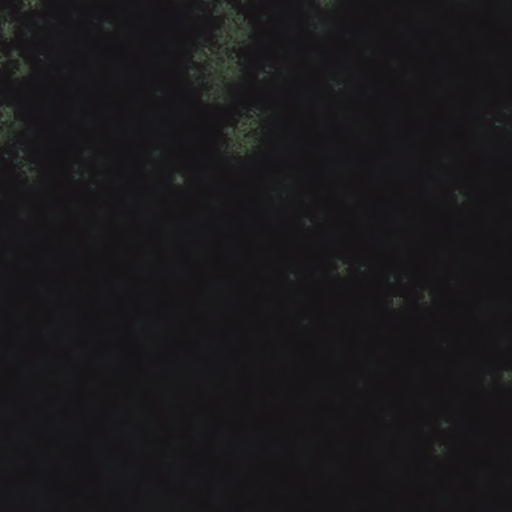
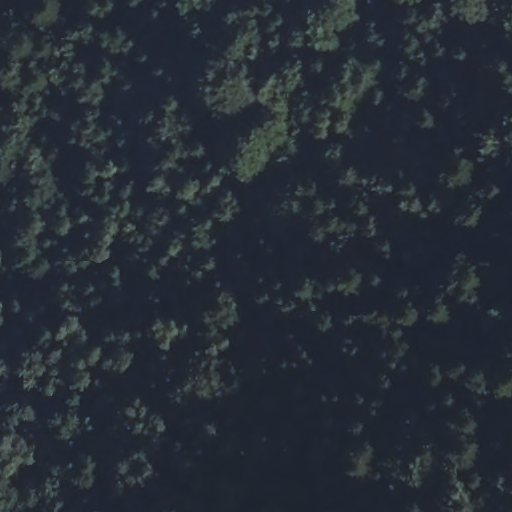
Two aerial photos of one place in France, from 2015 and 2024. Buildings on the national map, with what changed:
[]

